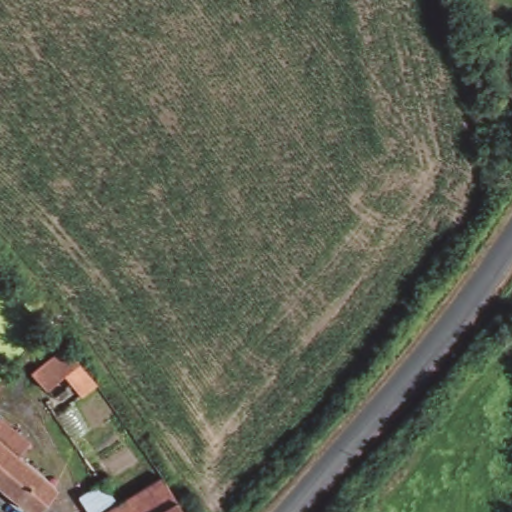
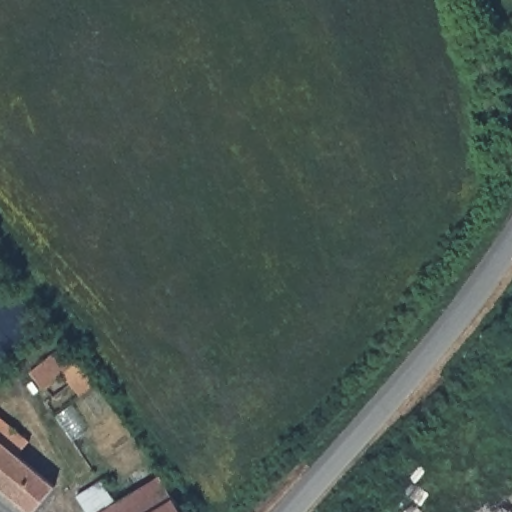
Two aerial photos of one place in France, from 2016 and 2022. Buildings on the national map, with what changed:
unchanged [(74,351),(97,379),(80,393),(65,375),(47,389),(35,372),(68,344),(74,351)]
unchanged [(18,455),(57,484),(37,509),(0,480),(0,414),(30,437),(18,455)]
unchanged [(82,497),(100,485),(114,506),(162,477),(183,512),(90,512),(82,497)]

